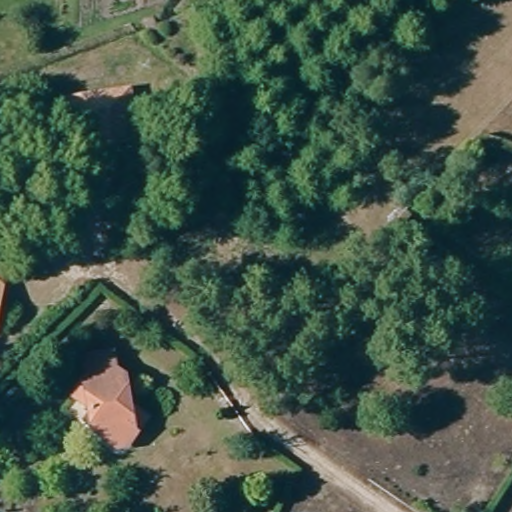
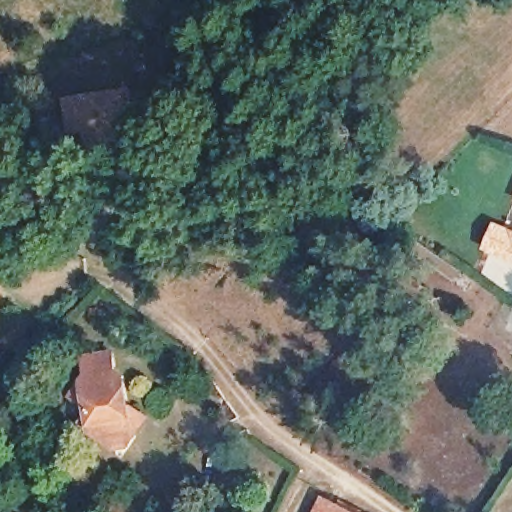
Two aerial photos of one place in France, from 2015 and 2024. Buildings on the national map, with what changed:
unchanged [(115,146),(92,150),(88,130),(69,133),(65,105),(83,101),(126,94),(133,122),(138,141),(115,146)]
new [(492,220),(512,226),(512,258),(480,246),(492,220)]
unchanged [(91,356),(121,350),(123,358),(126,371),(131,404),(133,407),(158,422),(151,437),(141,433),(130,446),(90,427),(95,417),(78,405),(94,378),(91,356)]
new [(320,495),(357,512),(312,512),(320,495)]

